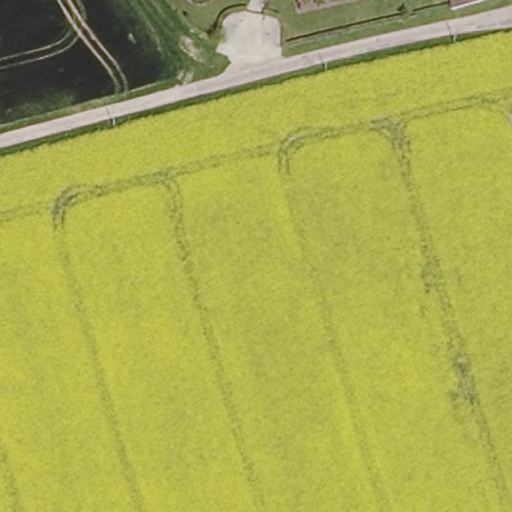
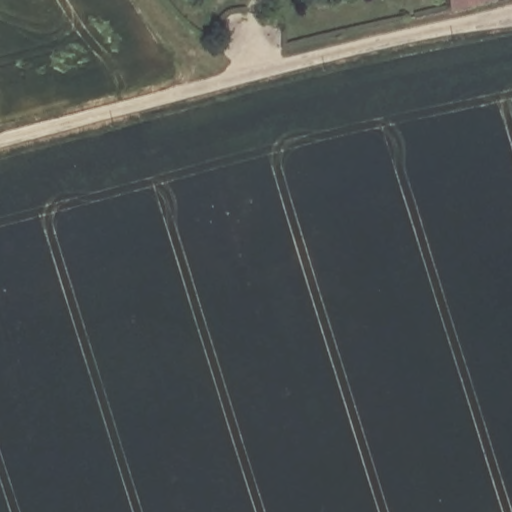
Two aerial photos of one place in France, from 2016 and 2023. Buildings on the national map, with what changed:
unchanged [(448,10),(447,0),(488,0),(448,10)]

